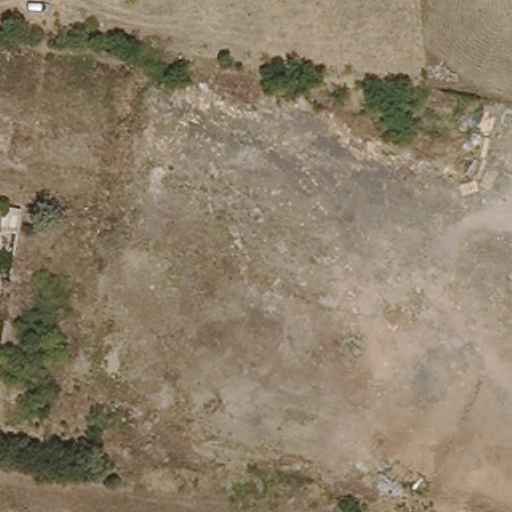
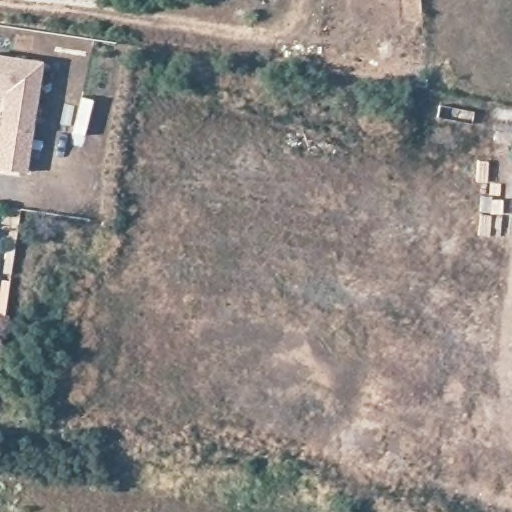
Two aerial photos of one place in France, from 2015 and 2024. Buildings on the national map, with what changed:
new [(46,51),(29,161),(0,157),(0,140),(10,79),(0,78),(0,44),(46,51)]

